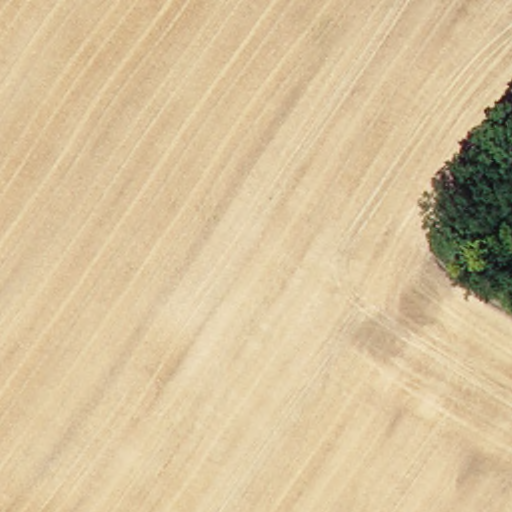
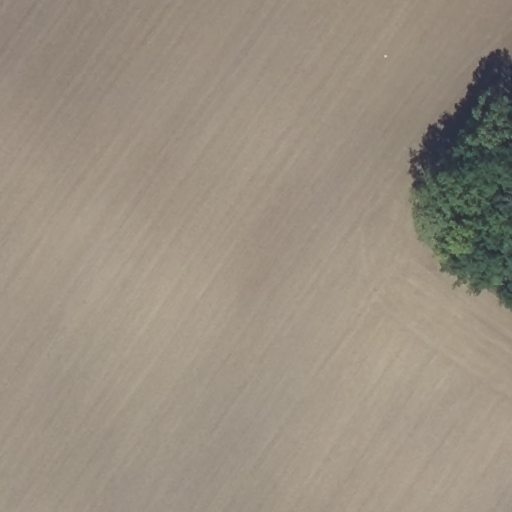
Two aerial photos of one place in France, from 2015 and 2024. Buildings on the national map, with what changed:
[]

